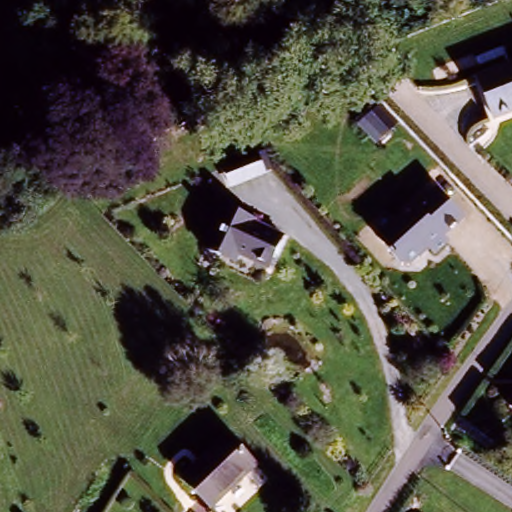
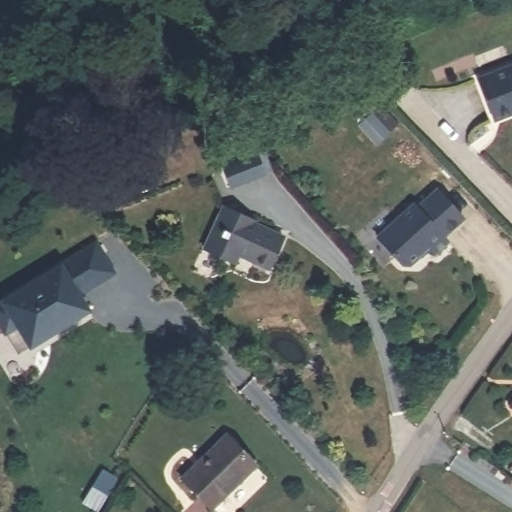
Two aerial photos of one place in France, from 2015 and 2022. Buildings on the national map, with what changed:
unchanged [(512,64),(512,109),(495,116),(480,75),(512,64)]
unchanged [(407,262),(380,234),(415,200),(420,204),(440,186),(464,211),(445,229),(450,234),(437,247),(430,240),(407,262)]
unchanged [(213,245),(233,209),(292,237),(270,277),(213,245)]
new [(0,330),(0,302),(98,245),(115,275),(80,297),(89,312),(27,348),(15,356),(3,335),(0,330)]
unchanged [(507,407),(512,400),(512,410),(507,407)]
unchanged [(247,459),(215,502),(187,482),(219,438),(247,459)]

